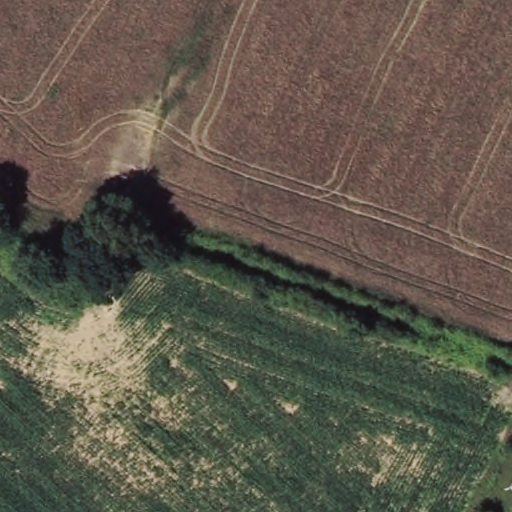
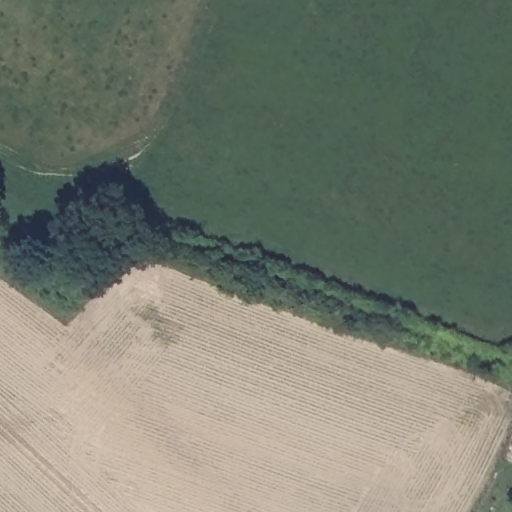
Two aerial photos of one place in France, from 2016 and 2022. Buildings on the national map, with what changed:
[]

